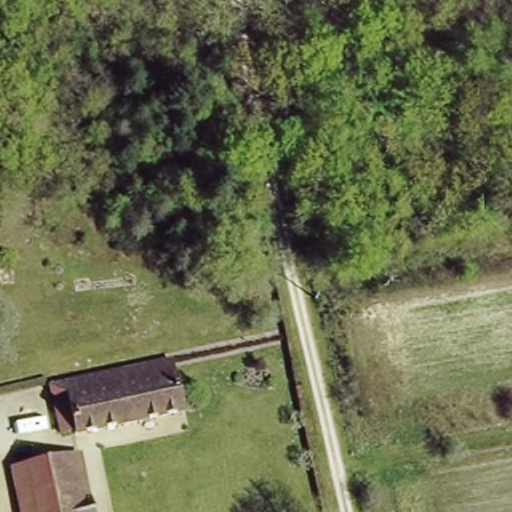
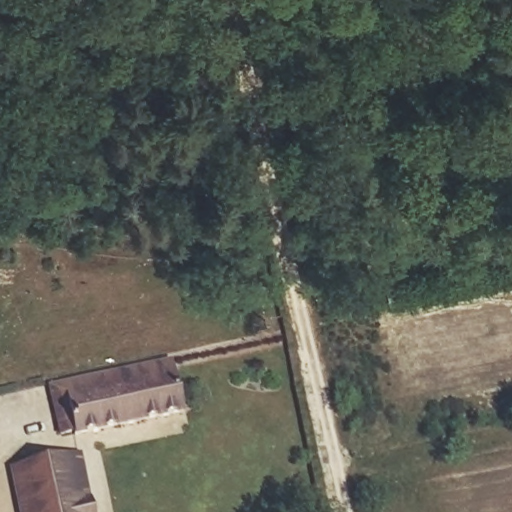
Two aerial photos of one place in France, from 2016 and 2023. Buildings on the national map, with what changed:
unchanged [(165,358),(179,410),(75,435),(72,428),(57,431),(45,386),(165,358)]
unchanged [(81,452),(94,512),(17,512),(7,467),(81,452)]

